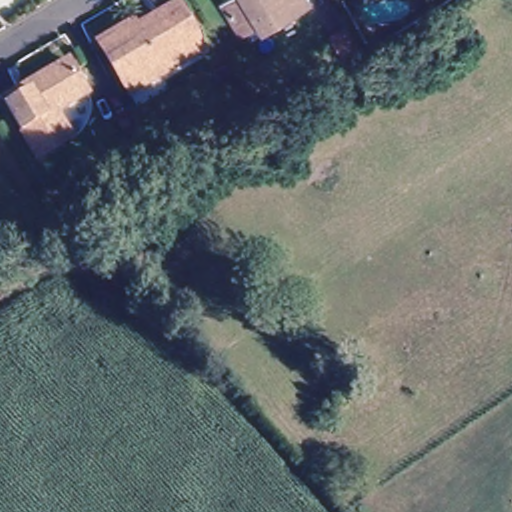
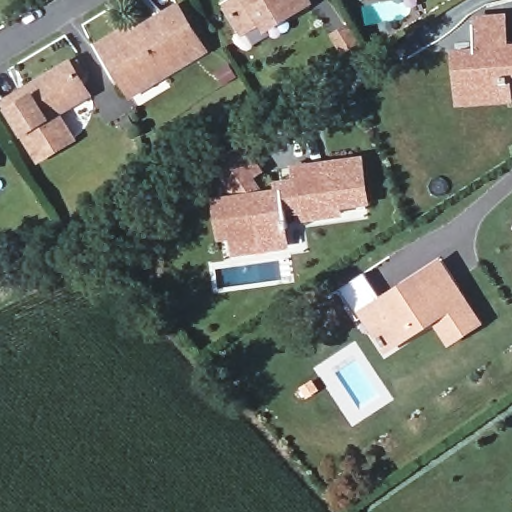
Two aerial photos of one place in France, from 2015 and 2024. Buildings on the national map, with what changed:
unchanged [(262,26),(245,36),(225,4),(232,0),(307,0),(310,5),(266,31),(262,26)]
unchanged [(102,45),(136,24),(141,34),(154,26),(182,9),(188,17),(209,51),(165,77),(133,96),(124,82),(102,45)]
new [(450,49),(474,46),(472,15),(507,13),(509,43),(512,42),(512,77),(511,104),(454,108),(450,49)]
unchanged [(74,141),(38,161),(4,103),(20,93),(24,99),(35,93),(31,86),(66,65),(81,88),(87,97),(63,112),(58,115),(74,141)]
new [(231,257),(229,240),(218,242),(212,198),(222,195),(204,168),(245,142),(265,172),(254,178),(264,189),(274,188),(273,181),(292,178),(289,165),(363,155),(370,207),(340,209),(341,218),(297,222),(295,208),(284,209),(289,249),(231,257)]
new [(362,318),(358,320),(338,290),(364,273),(380,297),(441,258),(484,325),(448,347),(433,323),(384,353),(362,318)]

